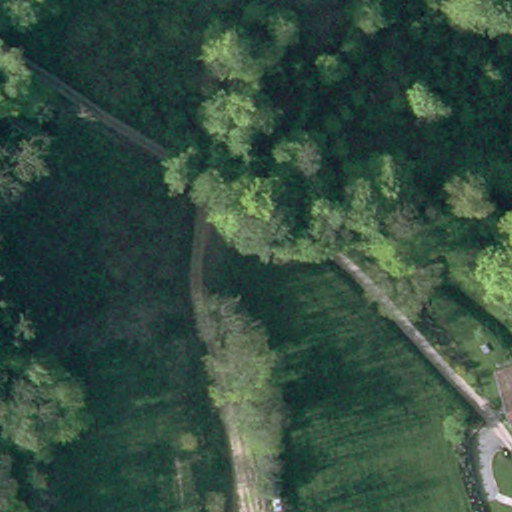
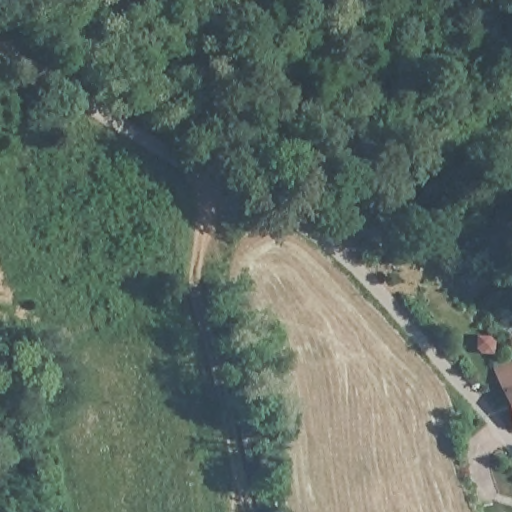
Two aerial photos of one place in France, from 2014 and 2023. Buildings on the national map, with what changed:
unchanged [(495,377),(491,364),(512,357),(512,425),(507,413),(495,377)]

